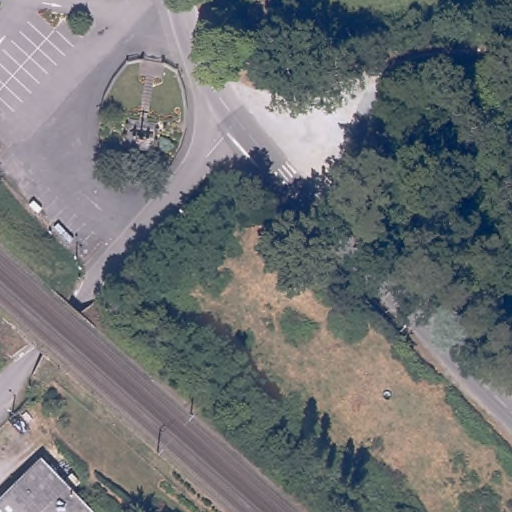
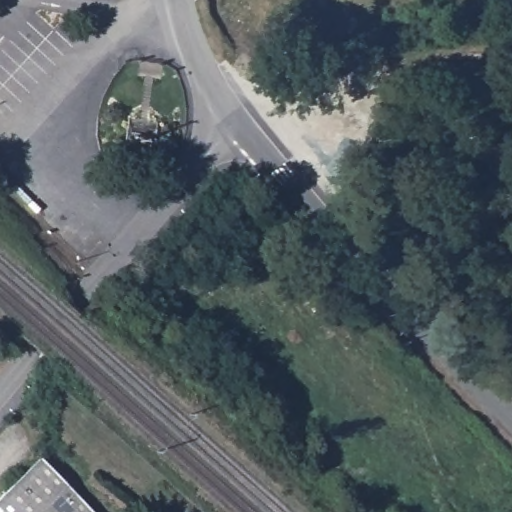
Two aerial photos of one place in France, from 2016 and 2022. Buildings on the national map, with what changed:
unchanged [(62,482),(71,474),(78,483),(71,490),(91,512),(0,512),(0,494),(39,457),(62,482)]

